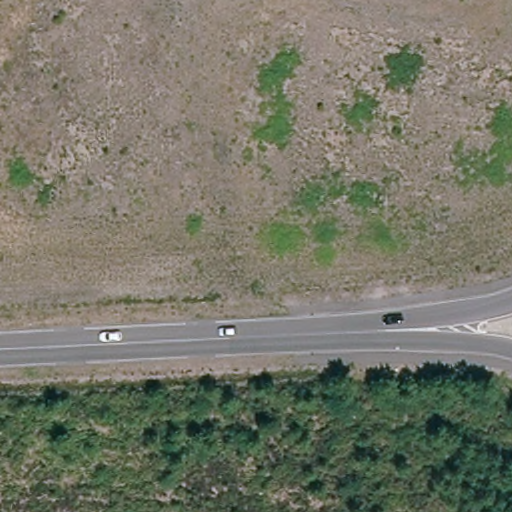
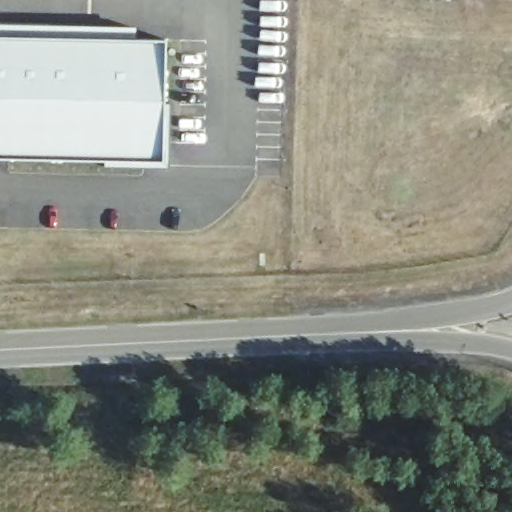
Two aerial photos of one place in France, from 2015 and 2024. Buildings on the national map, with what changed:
new [(136,38),(167,39),(164,161),(0,157),(0,25),(136,28),(136,38)]

